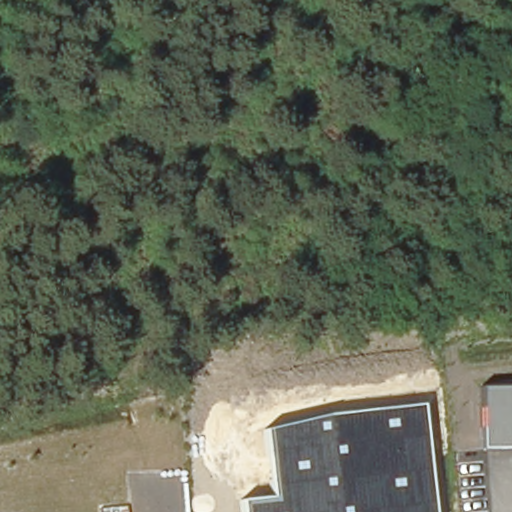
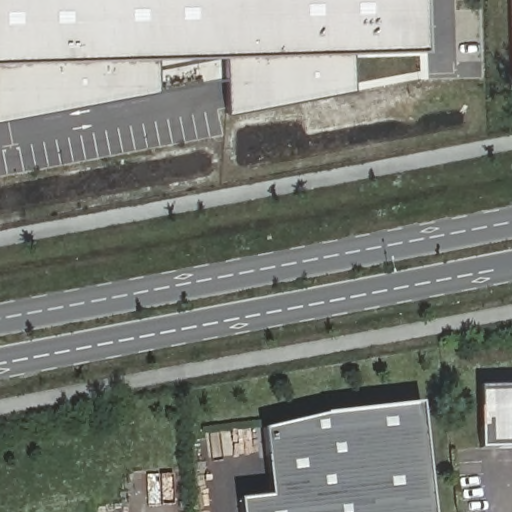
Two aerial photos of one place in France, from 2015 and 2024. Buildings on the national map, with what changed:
new [(349,46),(348,85),(224,109),(224,78),(0,120),(0,0),(420,0),(422,41),(349,46)]
new [(511,0),(512,0),(512,16),(511,0)]
unchanged [(483,450),(481,387),(512,386),(512,449),(483,450)]
unchanged [(433,512),(244,512),(243,501),(273,496),(264,429),(329,414),(422,404),(433,512)]

